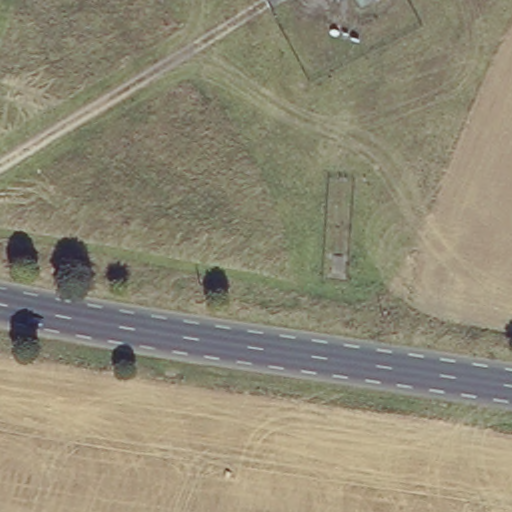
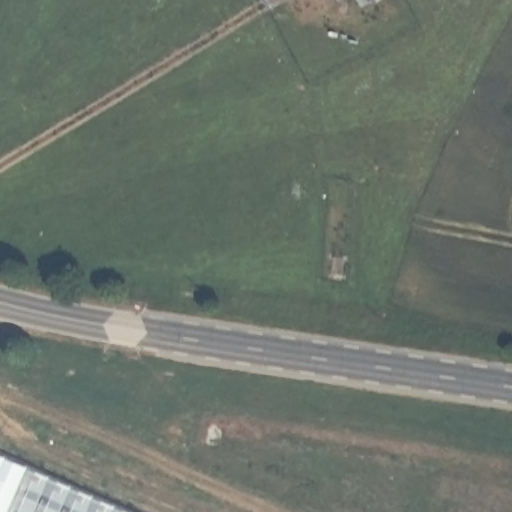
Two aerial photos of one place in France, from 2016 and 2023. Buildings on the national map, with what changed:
new [(0,512),(0,445),(146,512),(0,512)]

